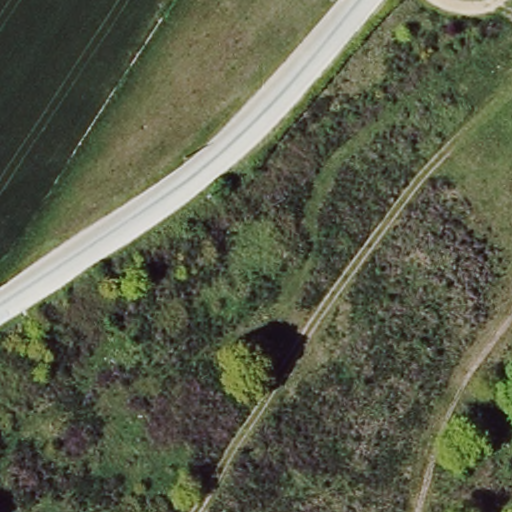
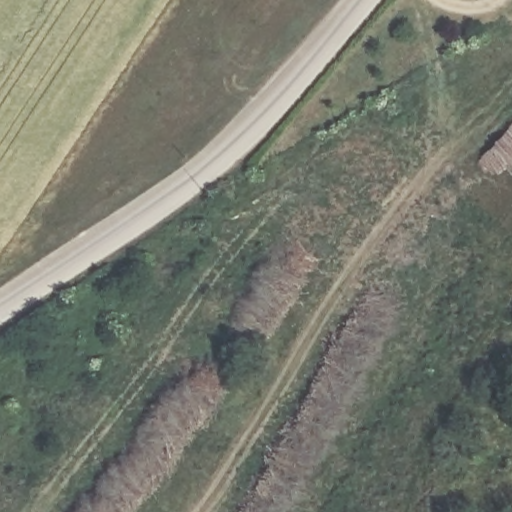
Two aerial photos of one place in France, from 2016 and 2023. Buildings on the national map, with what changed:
[]

